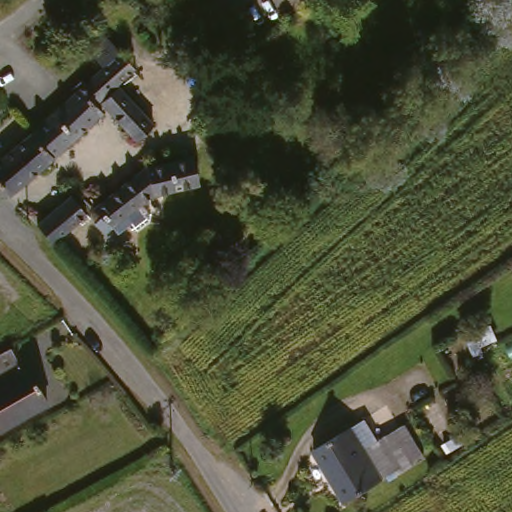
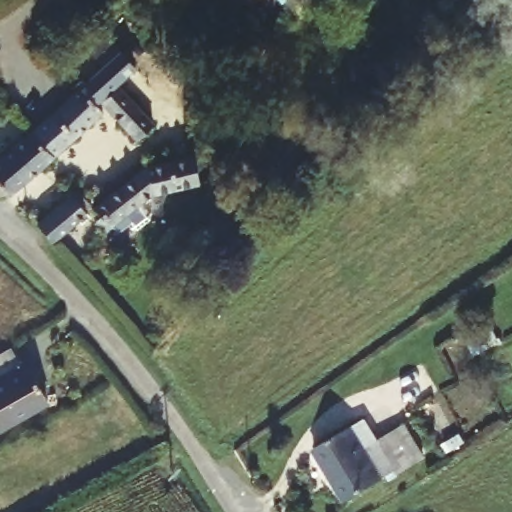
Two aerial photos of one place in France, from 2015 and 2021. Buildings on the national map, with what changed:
unchanged [(125,51),(140,66),(124,82),(102,103),(109,110),(82,135),(59,156),(36,131),(125,51)]
unchanged [(161,123),(159,126),(145,140),(109,102),(127,87),(161,123)]
unchanged [(59,156),(51,163),(15,195),(4,195),(0,192),(0,164),(36,131),(59,156)]
unchanged [(102,219),(108,213),(105,210),(101,207),(136,180),(140,177),(165,156),(201,153),(205,182),(193,185),(166,190),(154,199),(160,206),(157,212),(141,226),(134,223),(125,230),(121,225),(119,223),(110,230),(102,219)]
unchanged [(82,193),(97,210),(62,237),(46,221),(82,193)]
unchanged [(7,430),(0,417),(0,354),(16,344),(27,362),(32,360),(56,402),(7,430)]
unchanged [(403,428),(421,459),(345,503),(317,452),(356,431),(367,452),(403,428)]

